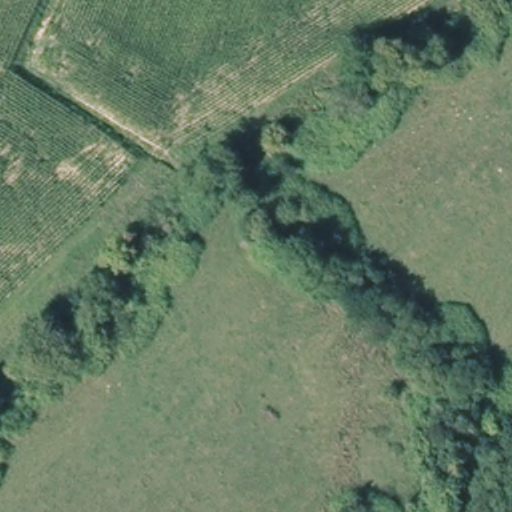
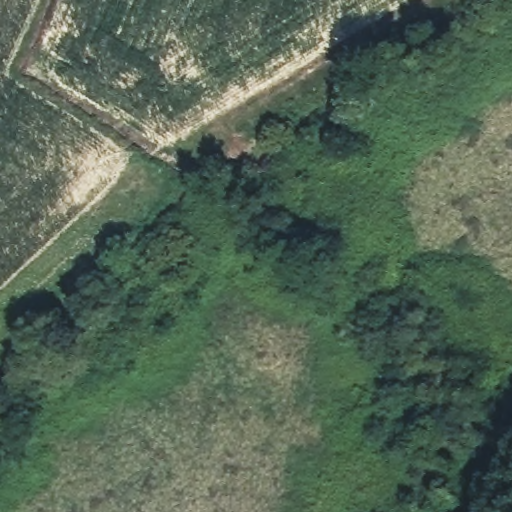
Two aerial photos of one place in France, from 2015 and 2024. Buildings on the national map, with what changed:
[]

